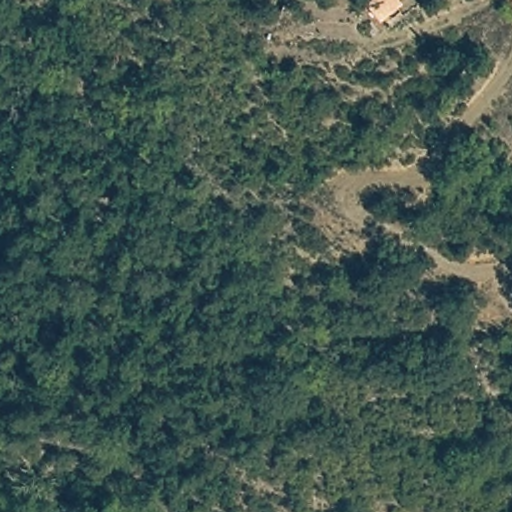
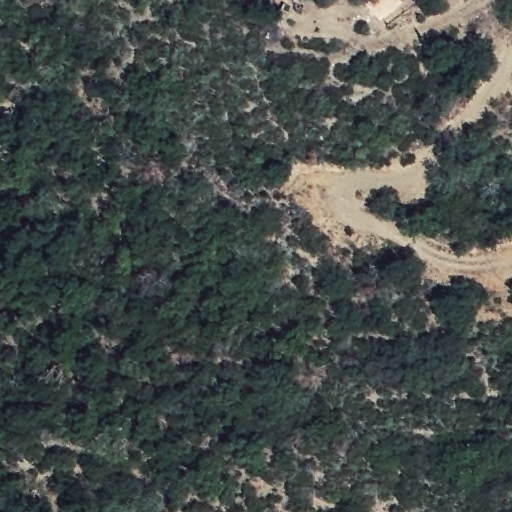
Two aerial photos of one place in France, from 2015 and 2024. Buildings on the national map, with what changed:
unchanged [(406,7),(380,28),(363,4),(369,0),(400,0),(406,7)]

